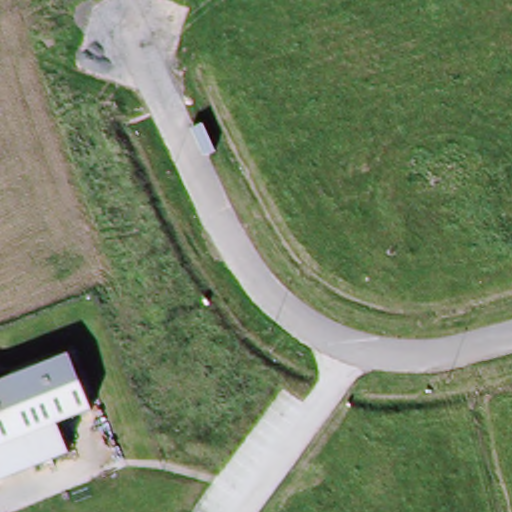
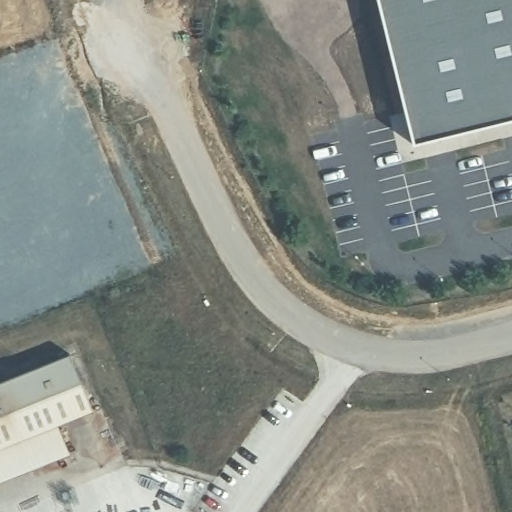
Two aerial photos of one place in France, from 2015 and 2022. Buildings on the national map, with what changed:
new [(412,142),(378,0),(512,0),(512,117),(412,142)]
unchanged [(0,383),(69,355),(91,412),(57,426),(68,453),(0,480),(0,383)]

